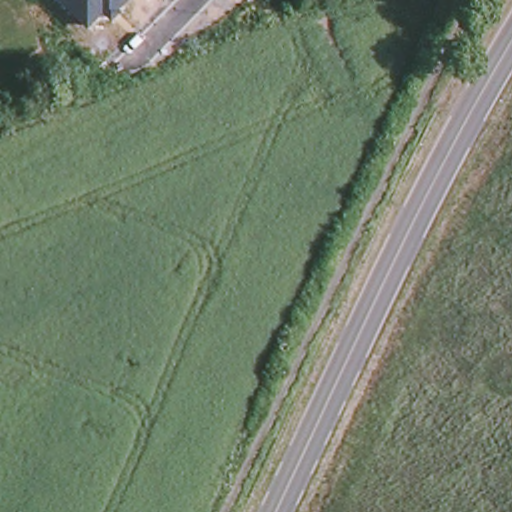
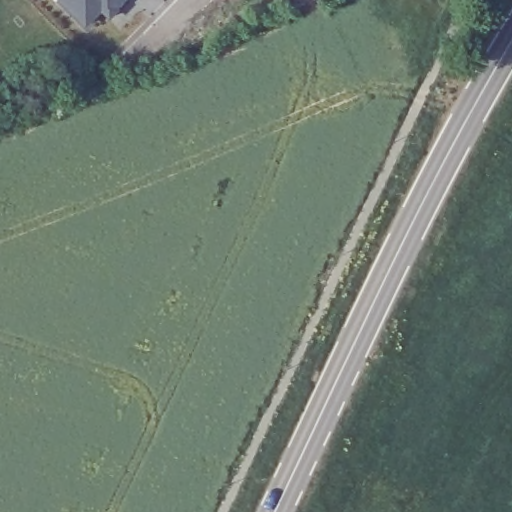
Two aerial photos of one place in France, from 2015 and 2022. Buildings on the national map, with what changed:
unchanged [(129,0),(120,10),(122,11),(112,21),(102,13),(87,28),(60,0),(129,0)]

